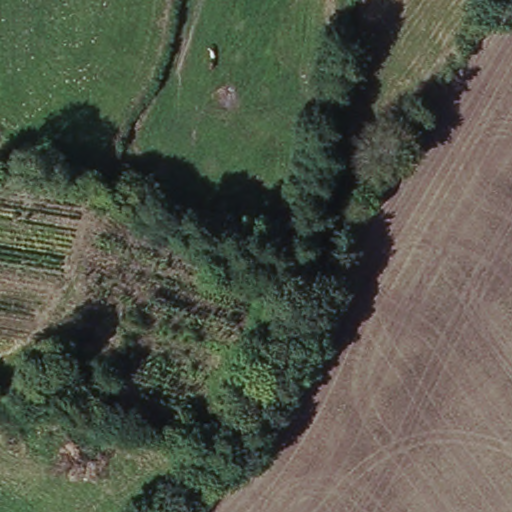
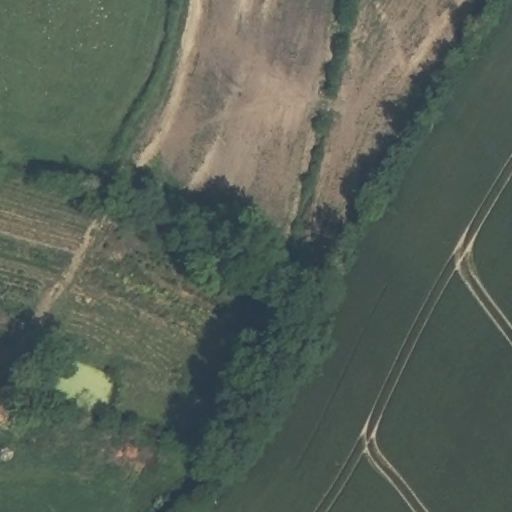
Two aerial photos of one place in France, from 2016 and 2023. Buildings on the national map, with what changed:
[]

